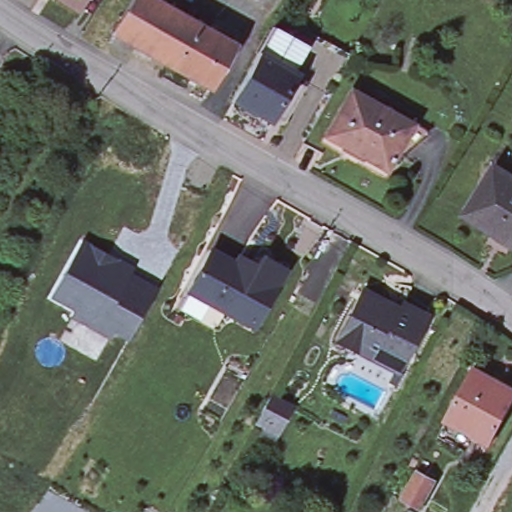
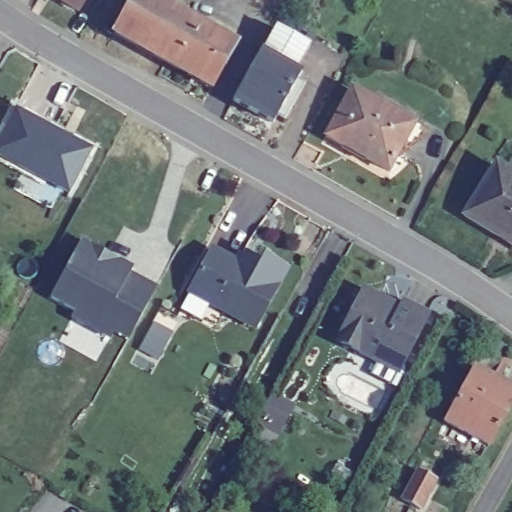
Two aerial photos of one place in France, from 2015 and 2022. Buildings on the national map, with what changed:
unchanged [(79,11),(61,0),(86,0),(79,11)]
unchanged [(233,46),(210,89),(113,34),(132,0),(152,0),(233,46)]
unchanged [(274,27),(309,47),(294,73),(259,53),(274,27)]
unchanged [(286,115),(279,111),(271,123),(232,101),(259,53),(294,73),(299,76),(295,82),(303,86),(286,115)]
unchanged [(350,90),(424,131),(421,136),(407,146),(403,142),(387,171),(325,136),(350,90)]
new [(70,192),(0,156),(0,135),(18,105),(93,146),(70,192)]
unchanged [(512,175),(512,246),(463,215),(494,164),(512,175)]
unchanged [(128,344),(113,336),(110,343),(71,322),(74,315),(50,302),(81,245),(131,273),(128,278),(154,293),(128,344)]
unchanged [(224,310),(215,328),(179,308),(188,290),(211,249),(234,262),(238,255),(255,265),(260,255),(284,269),(253,326),(224,310)]
unchanged [(400,365),(361,344),(357,351),(336,340),(362,291),(398,310),(401,304),(426,317),(400,365)]
unchanged [(444,421),(473,367),(504,384),(512,389),(512,402),(489,445),(476,438),(444,421)]
unchanged [(255,424),(263,410),(269,398),(288,407),(273,434),(266,447),(253,441),(261,427),(255,424)]
unchanged [(419,509),(402,499),(417,471),(434,480),(419,509)]

